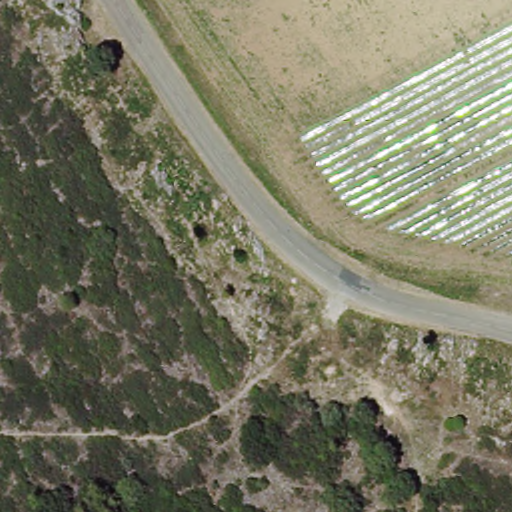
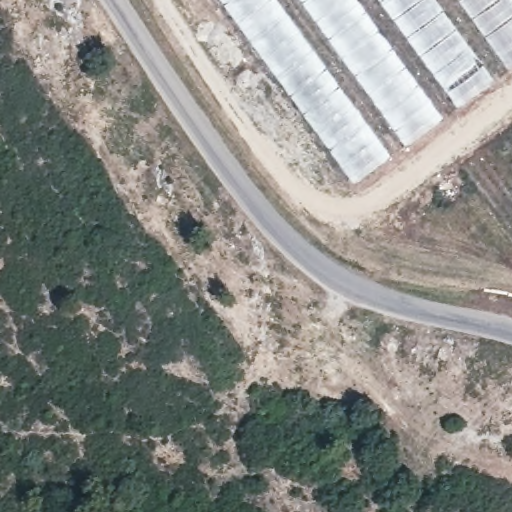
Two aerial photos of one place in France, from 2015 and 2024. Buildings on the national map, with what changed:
new [(215,0),(512,0),(512,69),(353,186),(215,0)]

